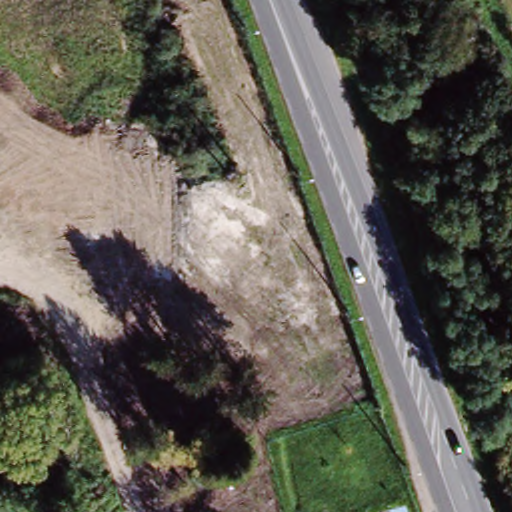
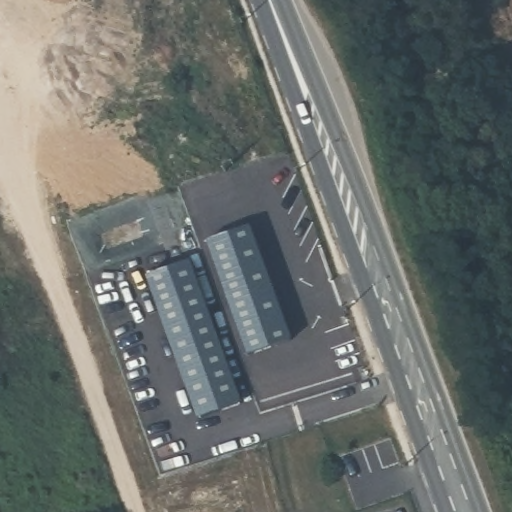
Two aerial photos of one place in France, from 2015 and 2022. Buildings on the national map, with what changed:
new [(251,226),(294,339),(250,358),(207,241),(251,226)]
new [(242,404),(199,420),(146,276),(191,260),(242,404)]

